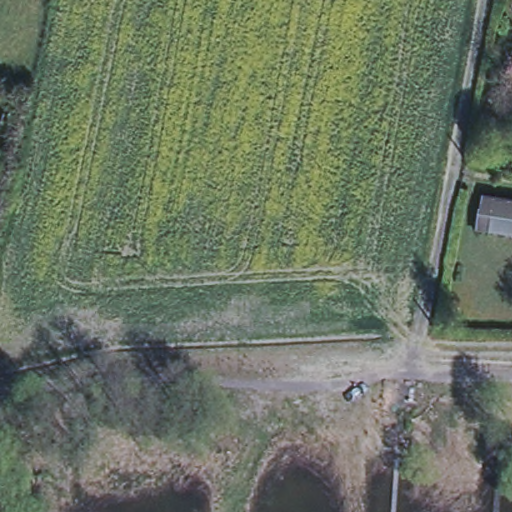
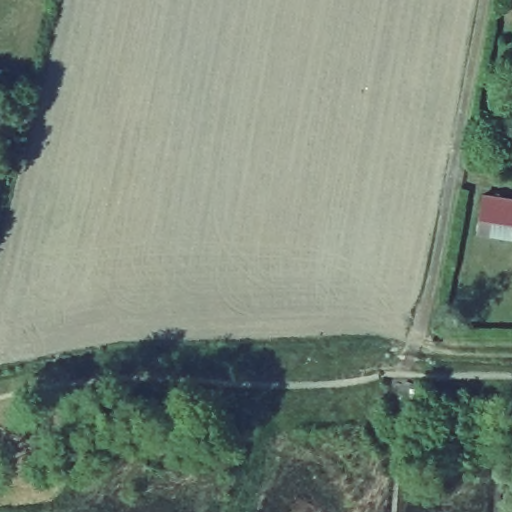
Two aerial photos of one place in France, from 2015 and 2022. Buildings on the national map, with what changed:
unchanged [(512,211),(512,230),(483,226),(485,206),(512,211)]

